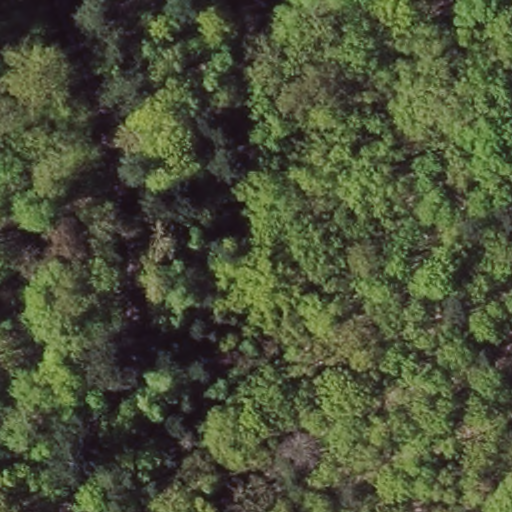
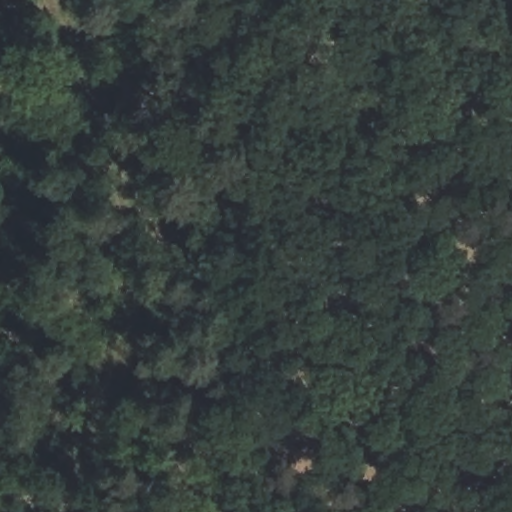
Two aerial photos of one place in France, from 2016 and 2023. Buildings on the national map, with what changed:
[]

